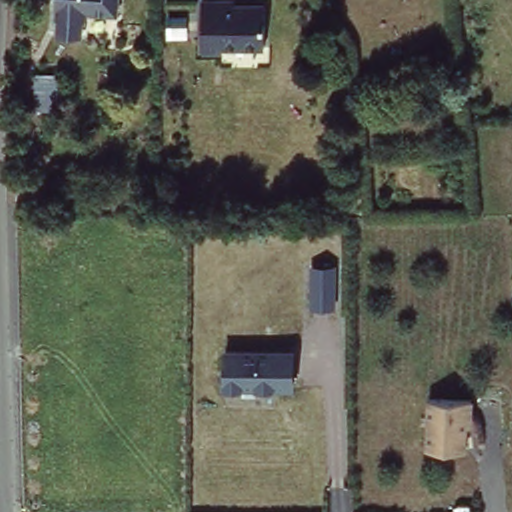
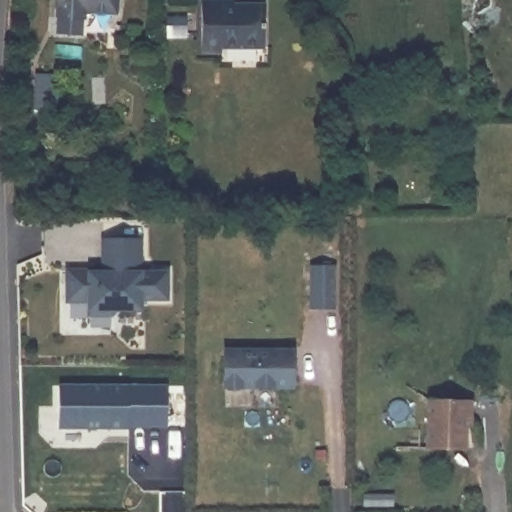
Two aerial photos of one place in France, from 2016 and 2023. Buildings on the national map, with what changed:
unchanged [(119,0),(118,12),(85,10),(84,18),(57,16),(57,8),(56,7),(57,0),(119,0)]
unchanged [(260,48),(217,49),(217,54),(198,55),(197,1),(218,1),(230,1),(231,8),(260,8),(260,48)]
new [(90,271),(90,272),(110,273),(110,267),(104,267),(104,239),(141,239),(141,267),(134,267),(134,272),(167,273),(166,299),(140,299),(140,305),(136,310),(115,310),(111,315),(90,315),(89,301),(68,301),(68,271),(90,271)]
new [(314,271),(336,271),(335,311),(313,310),(314,271)]
unchanged [(293,396),(224,393),(224,346),(293,346),(293,396)]
new [(59,386),(166,387),(166,426),(126,426),(126,429),(58,428),(59,386)]
unchanged [(470,448),(429,446),(430,393),(474,393),(470,448)]

